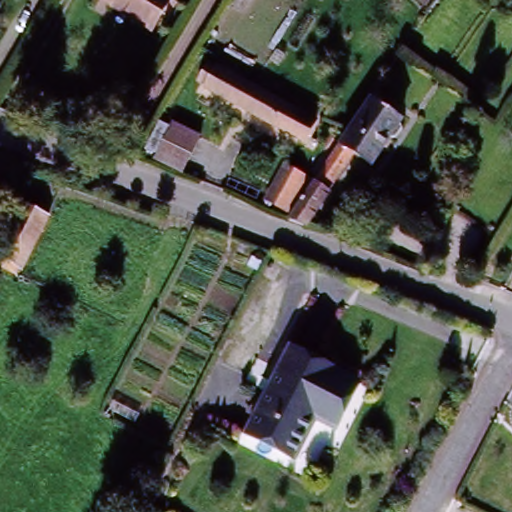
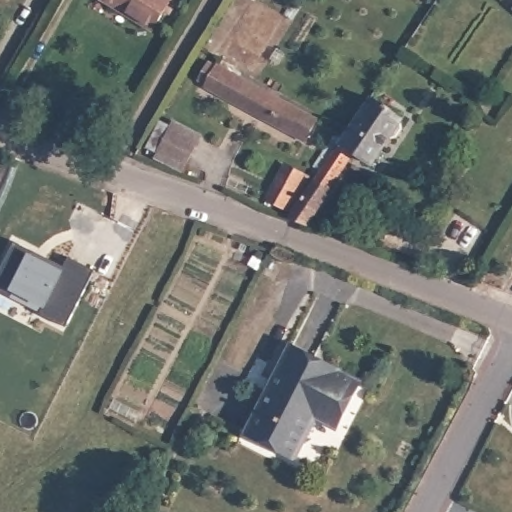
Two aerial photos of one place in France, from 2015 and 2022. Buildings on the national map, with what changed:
unchanged [(155,30),(102,0),(173,0),(155,30)]
unchanged [(305,142),(207,87),(217,67),(316,123),(305,142)]
unchanged [(380,102),(382,100),(390,105),(388,107),(398,115),(402,117),(405,126),(397,135),(388,136),(371,161),(366,157),(355,150),(340,140),(344,133),(370,95),(380,102)]
unchanged [(200,137),(182,174),(155,160),(174,124),(200,137)]
unchanged [(355,150),(322,200),(306,223),(288,215),(303,193),(340,140),(355,150)]
unchanged [(296,170),(295,171),(301,175),(282,206),(267,197),(286,164),(296,170)]
demolished [(48,221),(21,276),(0,266),(0,259),(25,210),(48,221)]
unchanged [(436,244),(427,265),(384,246),(391,225),(436,244)]
new [(67,266),(72,258),(96,271),(70,328),(43,314),(45,311),(0,288),(0,275),(17,241),(67,266)]
unchanged [(358,382),(336,426),(315,416),(295,457),(246,433),(290,347),(358,382)]

